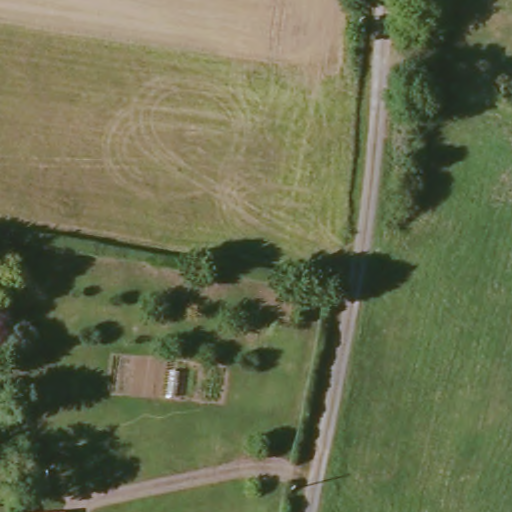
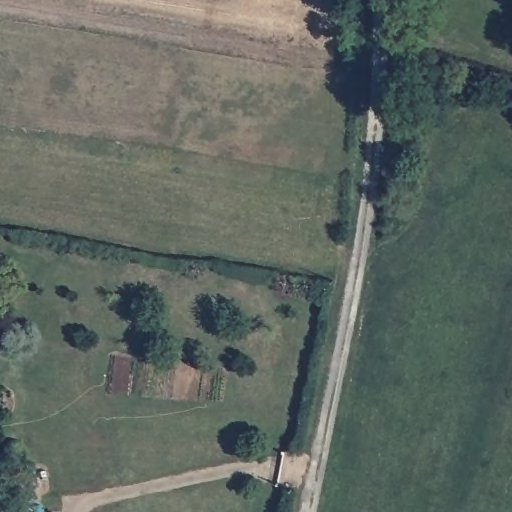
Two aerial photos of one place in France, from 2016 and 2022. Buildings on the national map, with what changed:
[]

